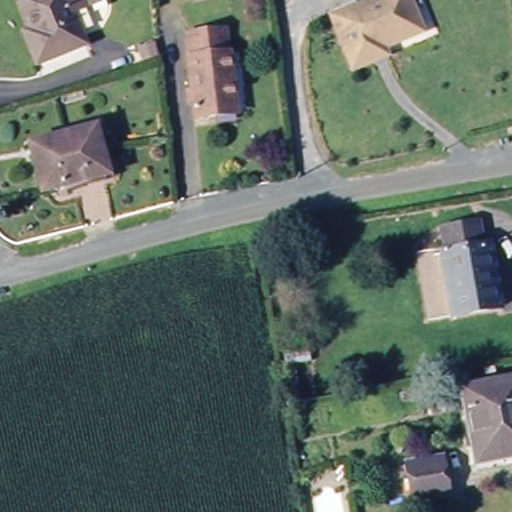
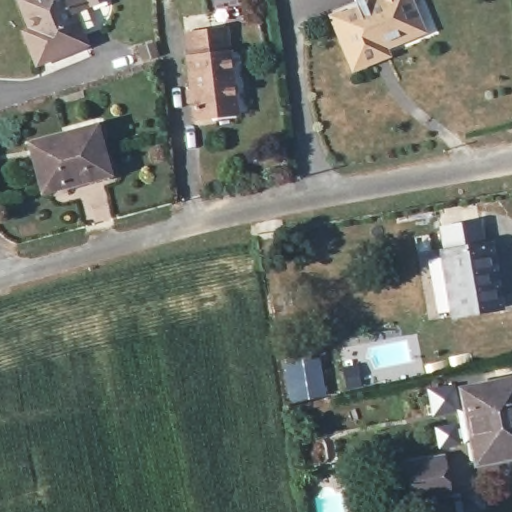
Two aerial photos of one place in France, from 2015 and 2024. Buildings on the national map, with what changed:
unchanged [(25,35),(36,30),(24,2),(29,0),(86,0),(88,3),(69,12),(85,46),(48,60),(37,66),(25,35)]
unchanged [(372,62),(350,71),(328,19),(376,1),(375,0),(408,0),(422,34),(380,50),(384,57),(372,62)]
unchanged [(241,118),(195,121),(189,62),(185,36),(209,33),(231,31),(241,118)]
unchanged [(42,194),(28,158),(92,134),(108,175),(42,194)]
unchanged [(455,315),(441,255),(448,253),(443,231),(476,224),(481,246),(488,245),(503,306),(455,315)]
new [(319,355),(327,395),(289,403),(281,362),(319,355)]
unchanged [(463,391),(512,380),(512,455),(477,464),(463,391)]
unchanged [(401,458),(414,456),(447,451),(454,492),(421,496),(408,498),(401,458)]

